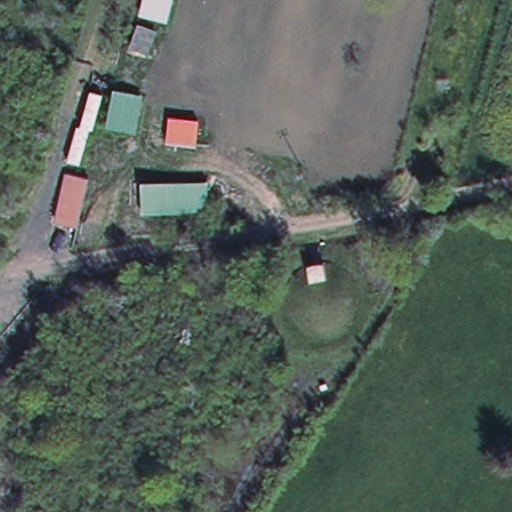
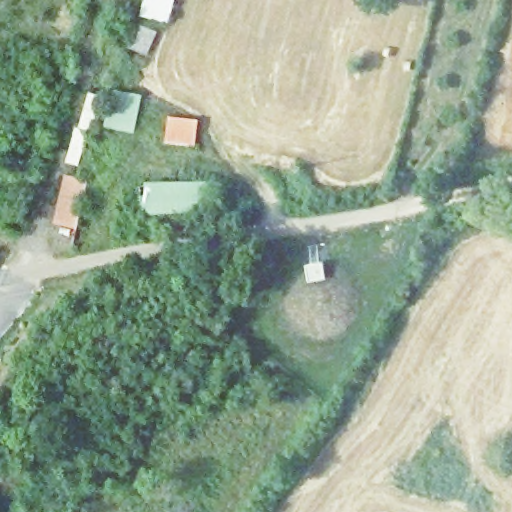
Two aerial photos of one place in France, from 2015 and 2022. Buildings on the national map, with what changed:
unchanged [(140,13),(143,0),(174,0),(169,21),(140,13)]
unchanged [(159,29),(151,52),(132,46),(140,23),(159,29)]
unchanged [(197,144),(167,141),(169,114),(200,118),(197,144)]
unchanged [(207,178),(210,206),(143,210),(141,182),(207,178)]

